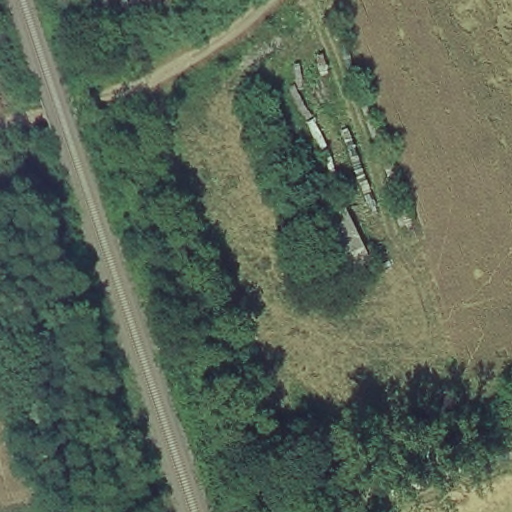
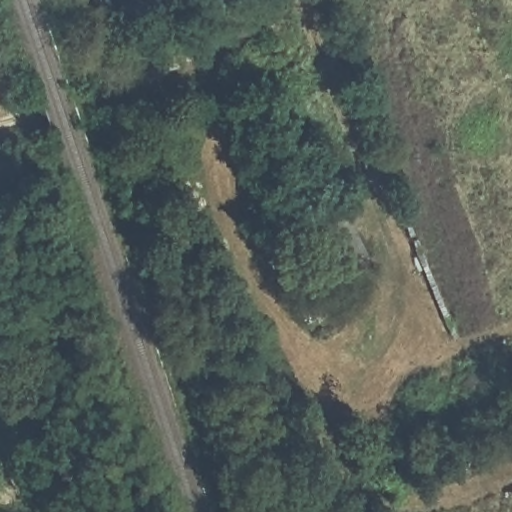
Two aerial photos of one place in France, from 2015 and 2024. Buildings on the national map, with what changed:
unchanged [(373,266),(329,290),(304,232),(345,209),(373,266)]

